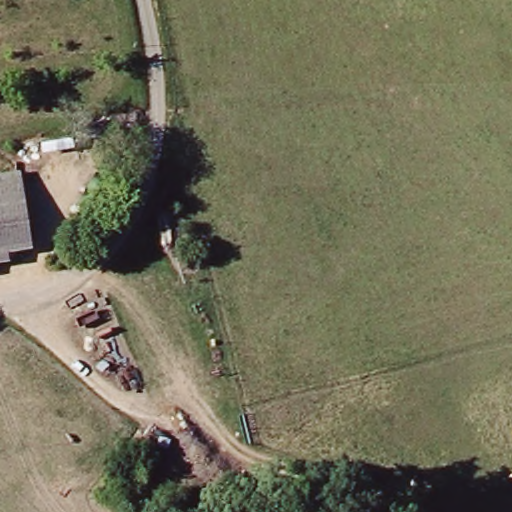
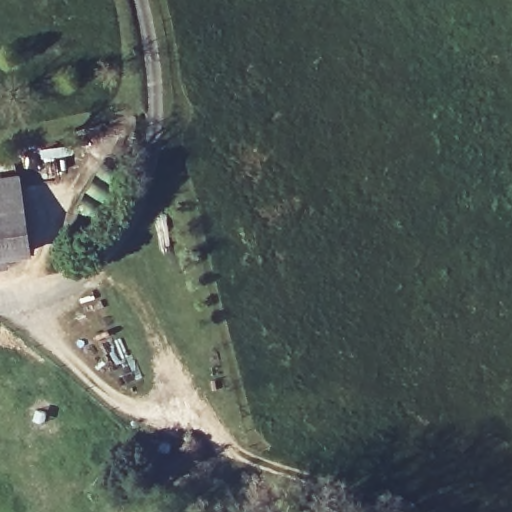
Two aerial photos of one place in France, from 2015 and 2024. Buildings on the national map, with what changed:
unchanged [(0,259),(0,176),(27,172),(38,247),(12,250),(14,257),(0,259)]

